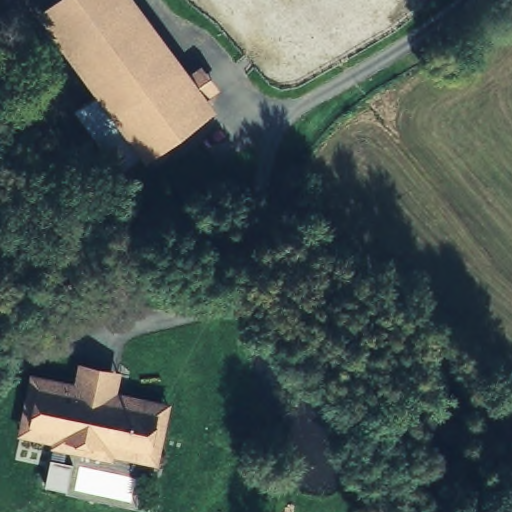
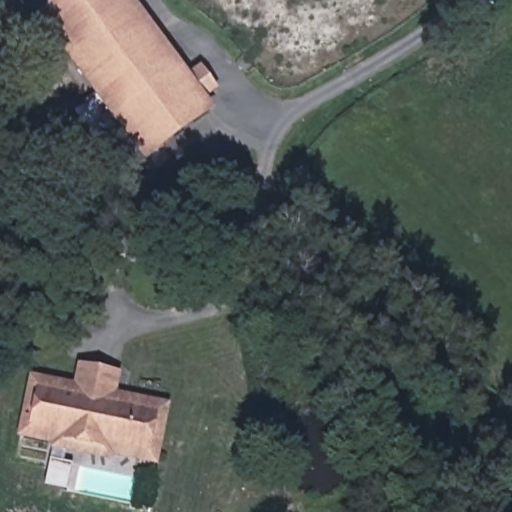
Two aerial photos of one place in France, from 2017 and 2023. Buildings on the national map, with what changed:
unchanged [(207,90),(193,100),(202,113),(140,158),(35,15),(56,0),(119,0),(180,82),(193,72),(207,90)]
unchanged [(140,158),(115,175),(72,112),(95,98),(140,158)]
unchanged [(74,383),(77,362),(123,372),(119,393),(173,403),(159,466),(52,452),(54,446),(17,439),(32,375),(74,383)]

